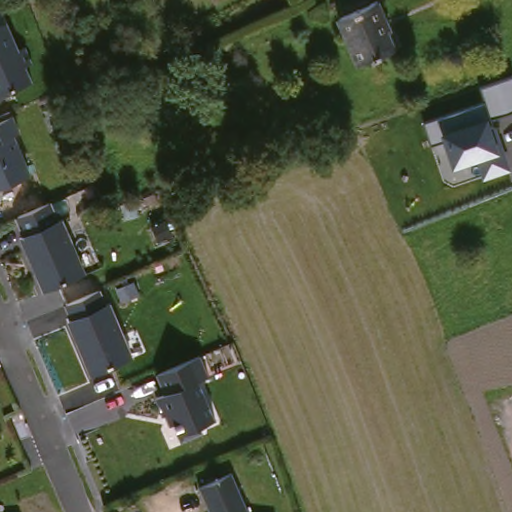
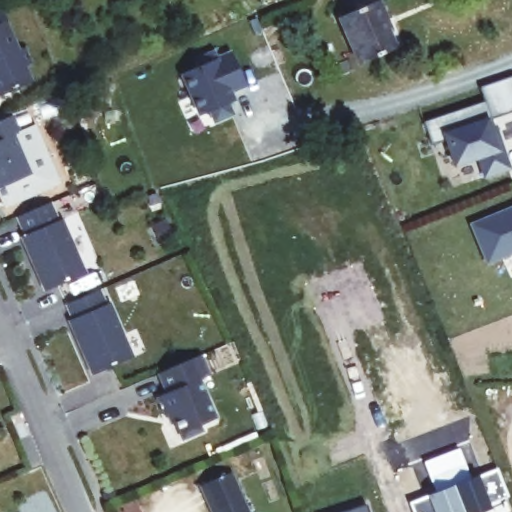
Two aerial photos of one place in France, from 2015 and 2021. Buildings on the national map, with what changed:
unchanged [(384,17),(379,20),(392,50),(358,63),(338,19),(377,2),(384,17)]
unchanged [(0,90),(0,6),(2,5),(20,49),(25,47),(32,64),(27,66),(33,78),(0,90)]
new [(248,87),(235,93),(237,99),(231,102),(236,114),(214,124),(209,111),(199,117),(180,73),(197,66),(194,59),(215,49),(218,56),(231,50),(248,87)]
unchanged [(480,159),(452,168),(443,138),(431,143),(426,121),(486,100),(482,86),(512,77),(512,111),(492,116),(495,126),(497,125),(512,169),(483,179),(480,159)]
unchanged [(14,113),(21,131),(14,135),(30,173),(0,186),(0,119),(14,113)]
unchanged [(22,236),(29,231),(21,214),(50,200),(59,219),(64,216),(85,272),(45,289),(22,236)]
new [(470,223),(512,206),(512,255),(487,264),(470,223)]
unchanged [(70,318),(75,315),(68,302),(101,287),(107,302),(111,298),(133,356),(92,374),(70,318)]
unchanged [(181,436),(160,393),(166,388),(159,370),(202,351),(211,373),(199,378),(216,416),(181,436)]
new [(443,456),(462,449),(472,479),(501,469),(512,497),(492,505),(493,509),(487,512),(412,512),(408,503),(437,493),(425,462),(443,456)]
unchanged [(232,475),(246,512),(209,512),(199,488),(232,475)]

